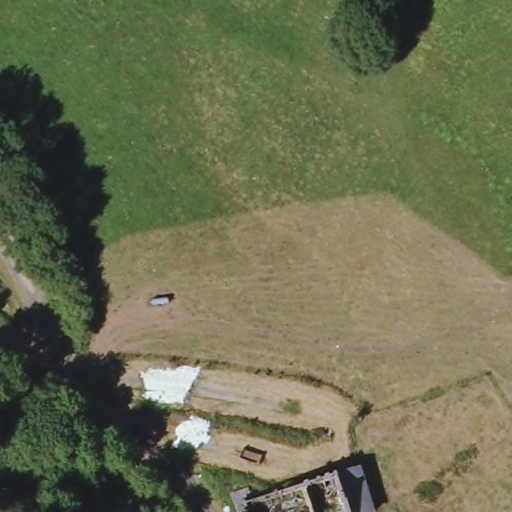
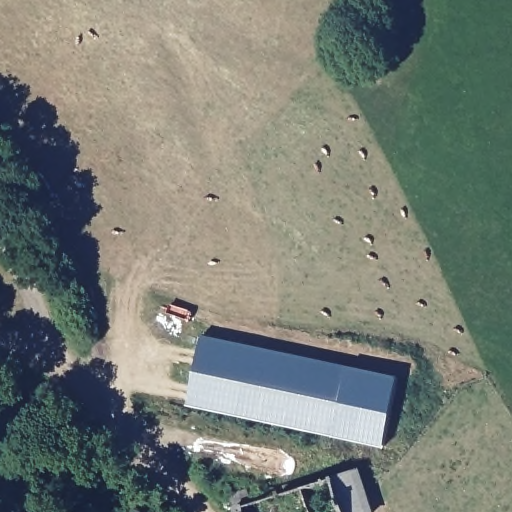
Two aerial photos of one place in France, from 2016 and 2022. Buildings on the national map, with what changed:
new [(400,375),(385,446),(187,404),(203,334),(400,375)]
unchanged [(336,476),(363,469),(376,512),(349,512),(336,476)]

